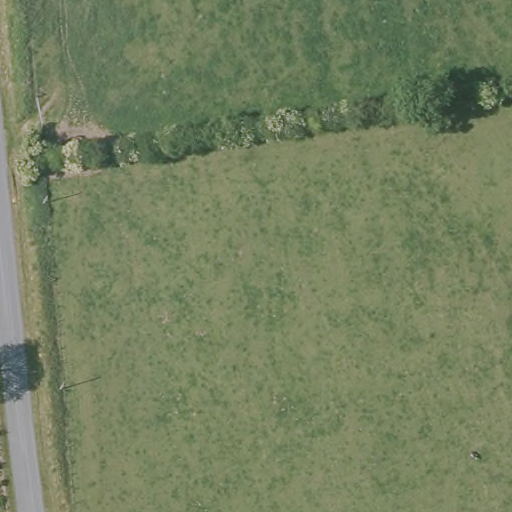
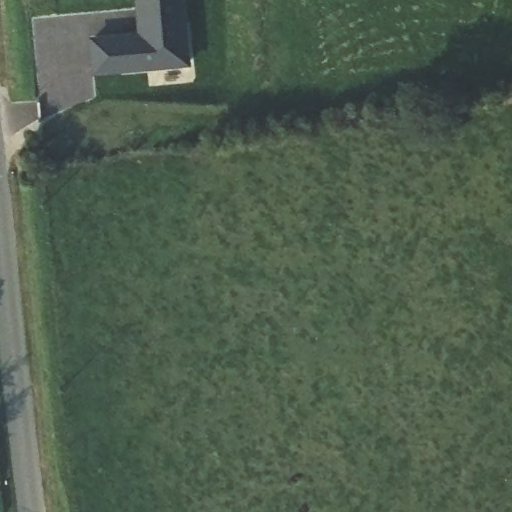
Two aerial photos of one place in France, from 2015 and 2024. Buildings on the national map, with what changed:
new [(187,64),(94,72),(91,39),(140,35),(137,0),(182,0),(187,64)]

